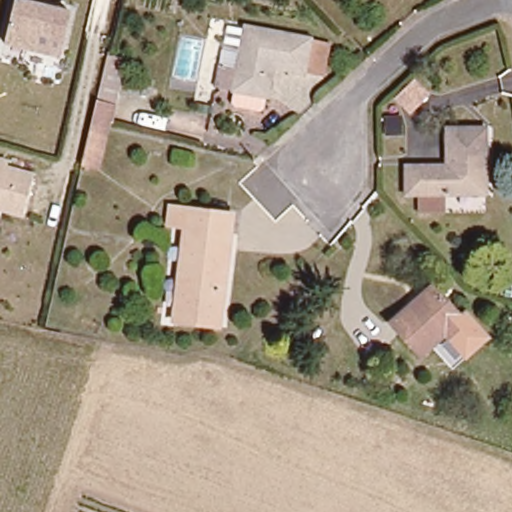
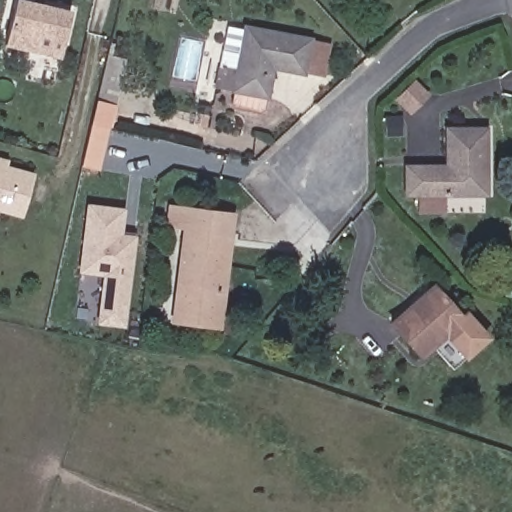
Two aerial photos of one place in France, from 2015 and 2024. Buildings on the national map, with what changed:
unchanged [(59,52),(4,39),(13,0),(35,0),(70,9),(59,52)]
unchanged [(272,70),(266,99),(263,99),(260,115),(229,109),(232,90),(215,86),(219,71),(235,75),(245,25),(310,39),(330,44),(323,79),(303,74),(302,77),(272,70)]
unchanged [(105,51),(127,56),(115,105),(95,99),(105,51)]
new [(418,82),(432,98),(411,117),(397,101),(418,82)]
unchanged [(80,166),(95,99),(115,105),(100,171),(80,166)]
unchanged [(405,163),(445,164),(446,126),(482,127),(482,194),(405,190),(405,163)]
unchanged [(0,211),(0,166),(30,176),(18,217),(0,211)]
new [(102,276),(78,273),(87,204),(125,208),(123,235),(136,236),(125,327),(96,325),(102,276)]
unchanged [(183,229),(166,227),(169,206),(229,216),(217,292),(221,292),(215,329),(167,321),(183,229)]
unchanged [(465,318),(420,357),(390,320),(434,283),(465,318)]

